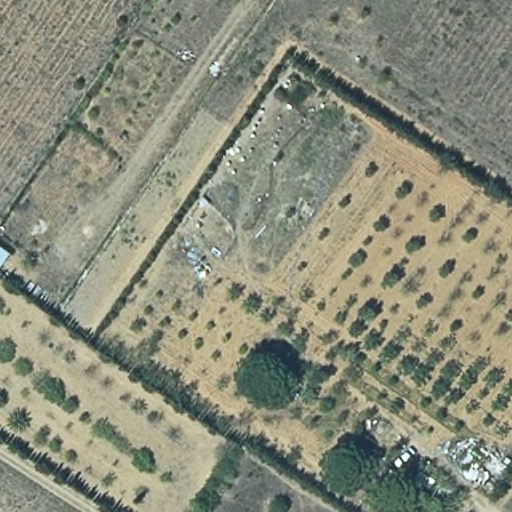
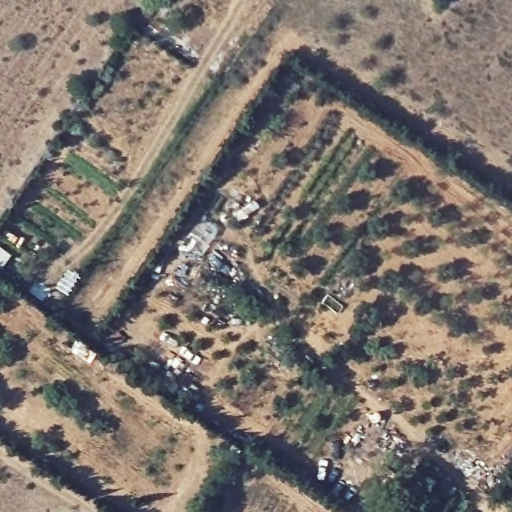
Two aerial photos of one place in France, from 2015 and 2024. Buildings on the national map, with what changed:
[]

